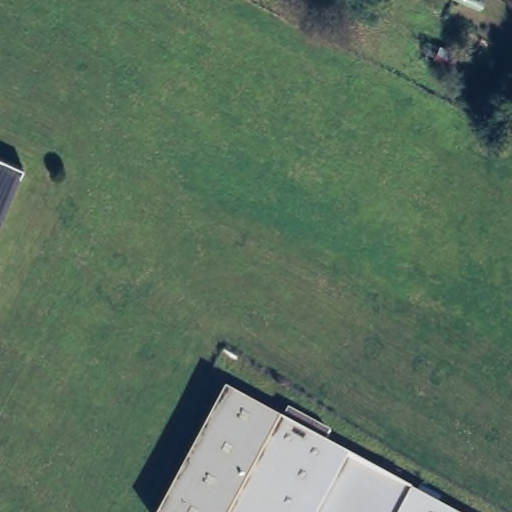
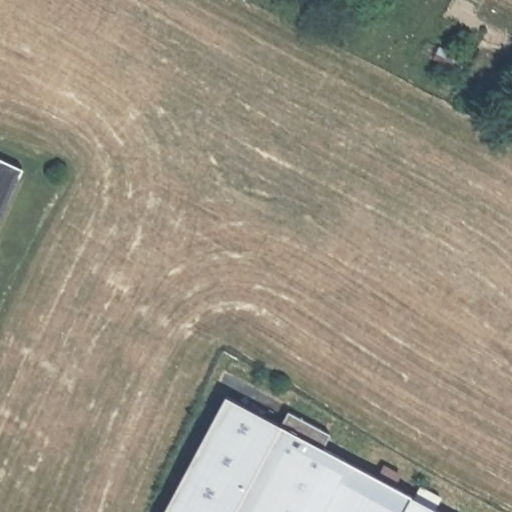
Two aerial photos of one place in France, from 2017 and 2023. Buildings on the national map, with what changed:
unchanged [(0,214),(0,157),(22,167),(0,214)]
unchanged [(231,394),(297,427),(303,413),(322,421),(313,437),(452,512),(164,512),(231,394)]

